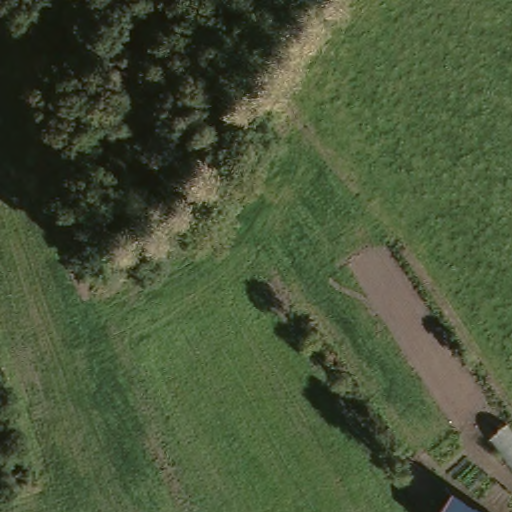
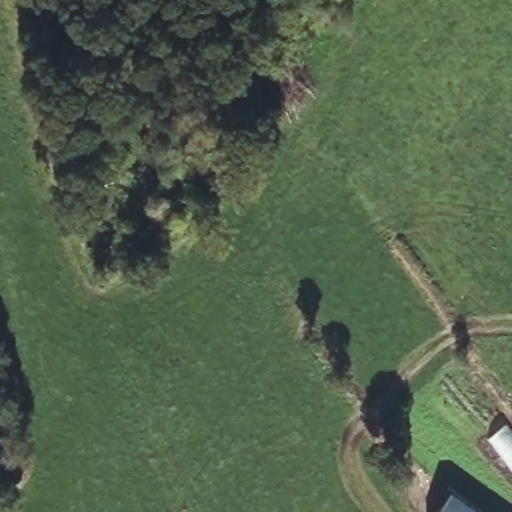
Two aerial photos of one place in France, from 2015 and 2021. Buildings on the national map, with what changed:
unchanged [(443,512),(456,494),(482,512),(443,512)]

